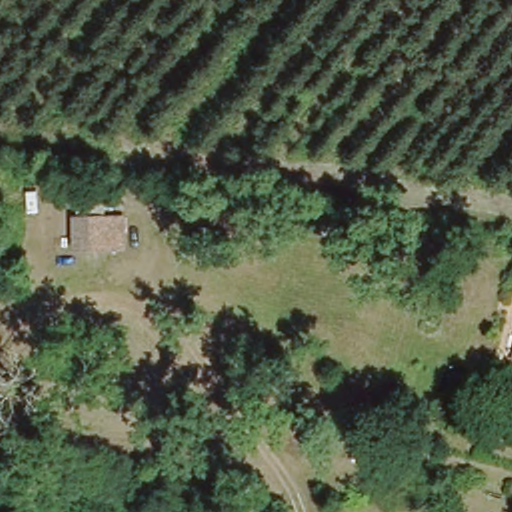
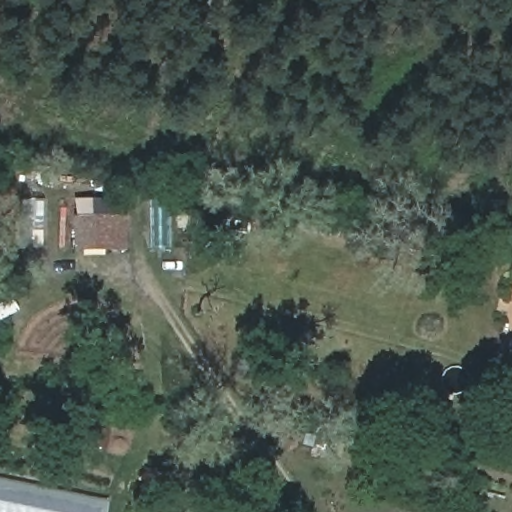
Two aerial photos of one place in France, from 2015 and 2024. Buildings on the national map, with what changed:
unchanged [(74,215),(123,215),(123,249),(74,250),(74,215)]
unchanged [(511,361),(512,357),(512,362),(511,361)]
new [(105,512),(0,512),(0,478),(108,500),(105,512)]

